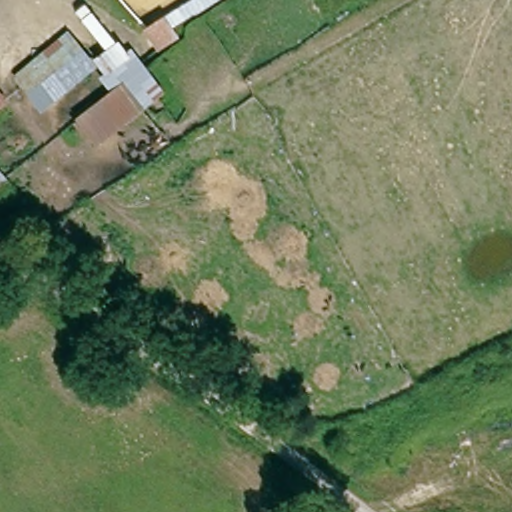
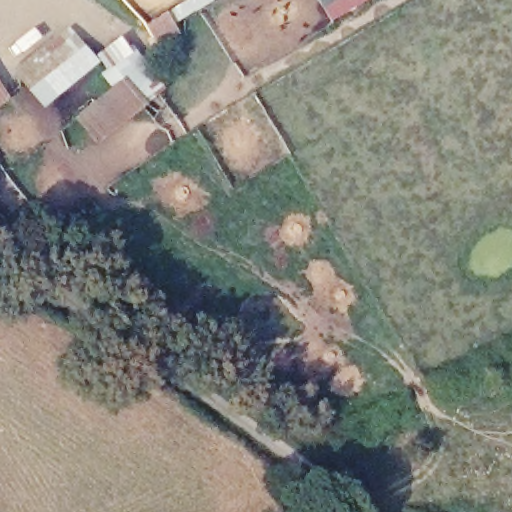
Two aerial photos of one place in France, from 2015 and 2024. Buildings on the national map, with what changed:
unchanged [(216,0),(172,26),(179,36),(158,49),(140,25),(182,0),(216,0)]
new [(314,0),(368,0),(328,24),(314,0)]
unchanged [(65,31),(90,56),(117,38),(127,55),(107,71),(99,63),(41,109),(13,75),(65,31)]
unchanged [(151,106),(100,144),(77,114),(117,88),(107,71),(127,55),(141,45),(172,89),(151,106)]
unchanged [(0,112),(0,94),(8,106),(0,112)]

